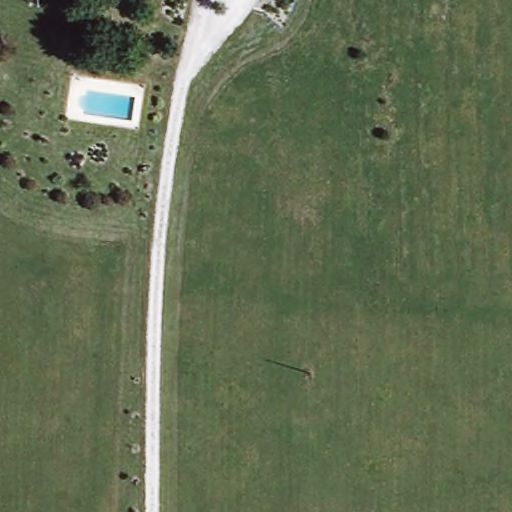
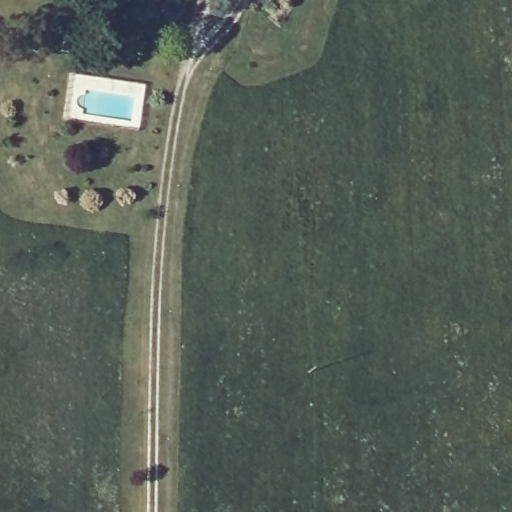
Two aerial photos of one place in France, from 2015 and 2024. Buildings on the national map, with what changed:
unchanged [(96,45),(83,44),(84,27),(97,28),(96,45)]

